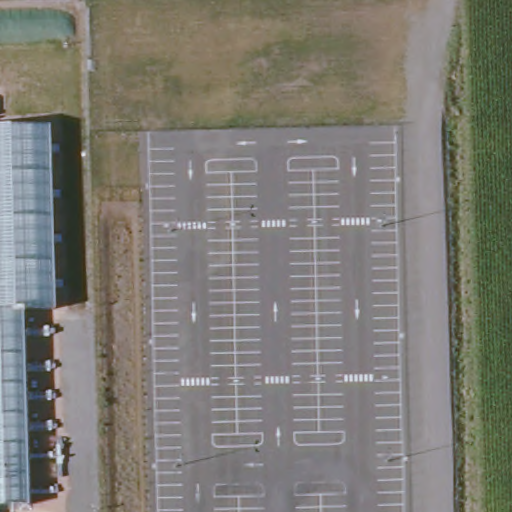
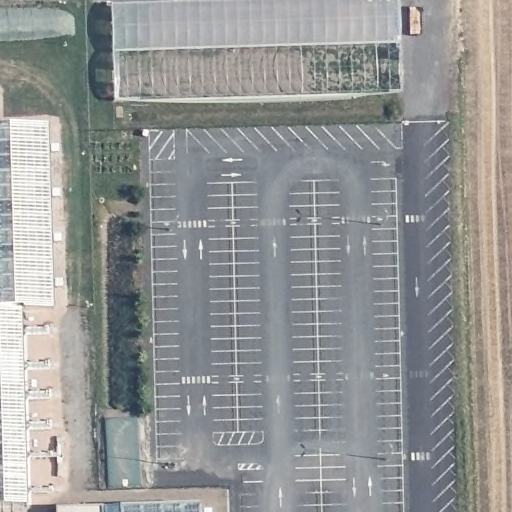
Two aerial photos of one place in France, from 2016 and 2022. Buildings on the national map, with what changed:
new [(115,101),(112,6),(287,0),(398,0),(402,92),(115,101)]
unchanged [(51,307),(20,307),(24,503),(0,503),(0,123),(46,122),(51,307)]

